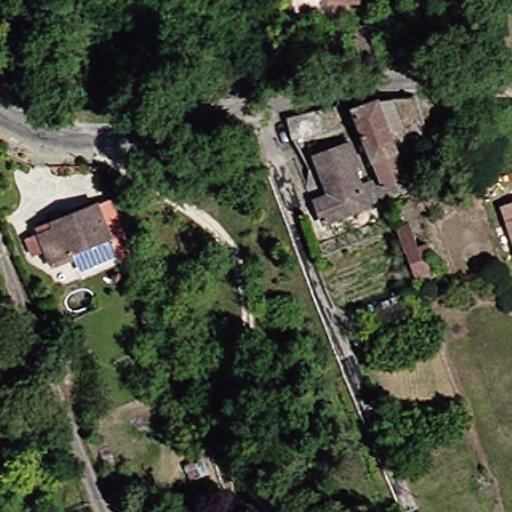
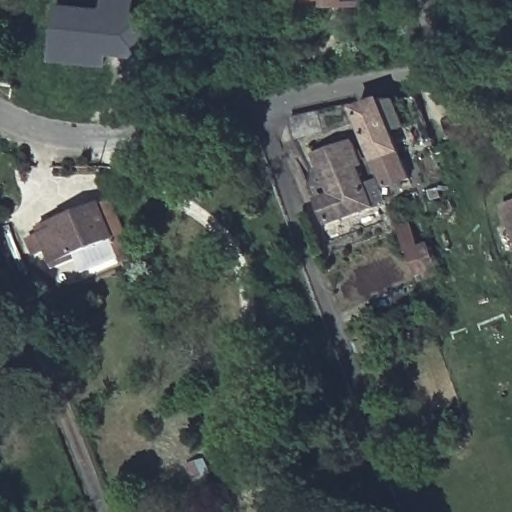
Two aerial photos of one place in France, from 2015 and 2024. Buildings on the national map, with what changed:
new [(126,69),(48,62),(51,5),(99,8),(100,0),(132,0),(126,69)]
unchanged [(348,1),(331,0),(348,0),(348,1)]
demolished [(57,13),(56,31),(41,30),(43,2),(50,3),(50,12),(57,13)]
unchanged [(368,49),(348,50),(347,25),(367,25),(368,49)]
unchanged [(386,97),(398,127),(384,133),(405,179),(379,189),(345,112),(371,102),(386,97)]
unchanged [(313,135),(284,139),(279,115),(308,110),(313,135)]
unchanged [(357,166),(352,167),(365,210),(317,224),(311,204),(324,200),(311,157),(350,145),(357,166)]
unchanged [(44,266),(37,250),(26,255),(19,240),(50,227),(48,221),(101,201),(132,270),(119,273),(105,242),(44,266)]
unchanged [(512,207),(512,233),(504,210),(512,207)]
unchanged [(417,221),(436,277),(411,287),(394,228),(417,221)]

